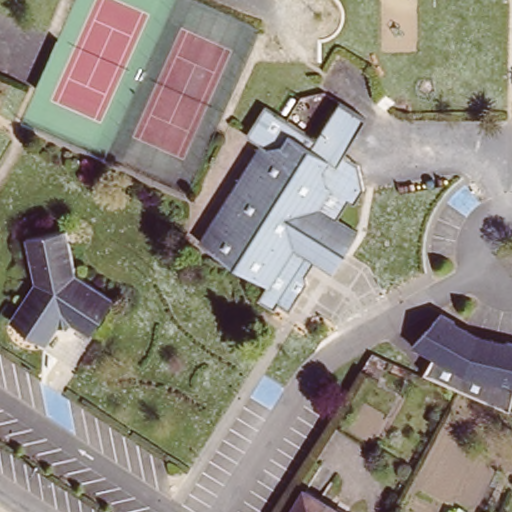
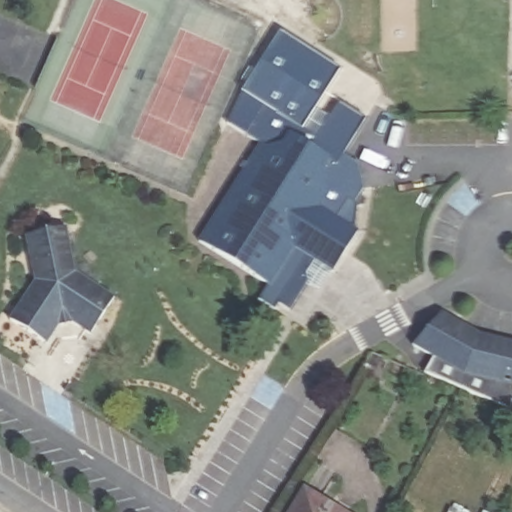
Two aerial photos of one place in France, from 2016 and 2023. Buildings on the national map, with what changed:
new [(321,140),(269,107),(250,137),(228,125),(243,93),(280,34),(339,71),(315,109),(333,121),(321,140)]
unchanged [(313,284),(295,314),(284,307),(280,314),(262,303),(272,287),(204,244),(264,146),(250,137),(269,107),(321,140),(344,104),(370,121),(347,156),(363,166),(370,189),(360,204),(354,200),(342,219),(362,232),(337,271),(320,260),(310,273),(313,284)]
unchanged [(37,281),(27,236),(67,226),(78,274),(116,299),(93,335),(75,322),(60,323),(47,342),(12,319),(37,281)]
unchanged [(483,334),(512,342),(512,389),(510,389),(502,407),(422,373),(433,358),(410,344),(444,313),(483,334)]
unchanged [(334,512),(290,512),(300,493),(334,512)]

